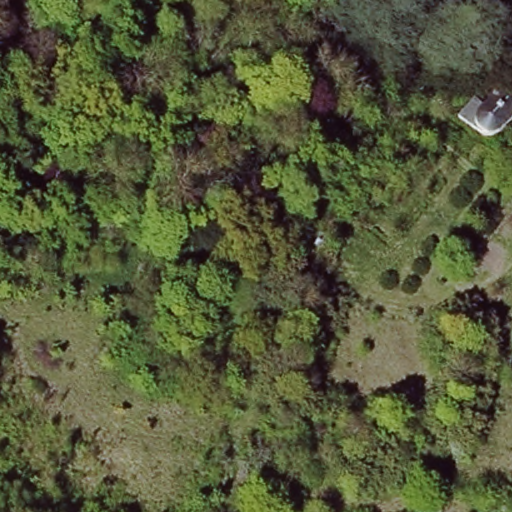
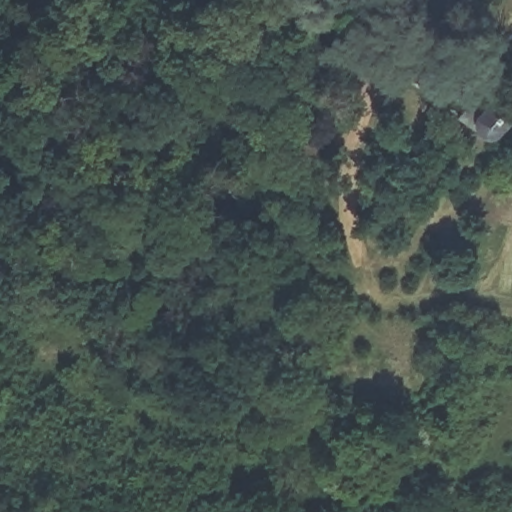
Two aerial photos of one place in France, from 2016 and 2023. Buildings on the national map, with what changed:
unchanged [(475,101),(487,108),(498,97),(512,107),(512,118),(503,131),(491,139),(461,117),(475,101)]

